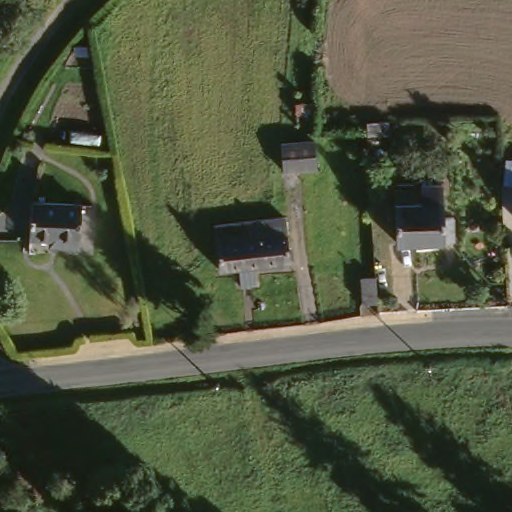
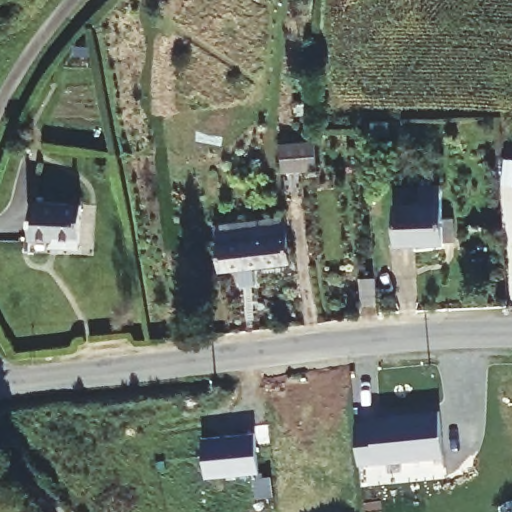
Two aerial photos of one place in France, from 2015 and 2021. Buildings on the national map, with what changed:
unchanged [(300,152),(309,152),(309,180),(292,180),(276,180),(275,152),(300,152)]
unchanged [(411,216),(417,216),(417,193),(437,191),(438,226),(448,225),(448,248),(392,250),(392,199),(410,197),(411,216)]
unchanged [(78,253),(55,252),(55,247),(27,246),(30,205),(80,205),(78,253)]
unchanged [(215,252),(212,231),(283,221),(284,236),(285,241),(289,266),(252,272),(254,289),(239,291),(237,274),(219,276),(215,252)]
unchanged [(362,285),(362,310),(347,310),(347,286),(362,285)]
new [(370,426),(369,422),(439,417),(444,461),(357,467),(353,428),(370,426)]
new [(252,436),(256,476),(203,482),(199,442),(252,436)]

